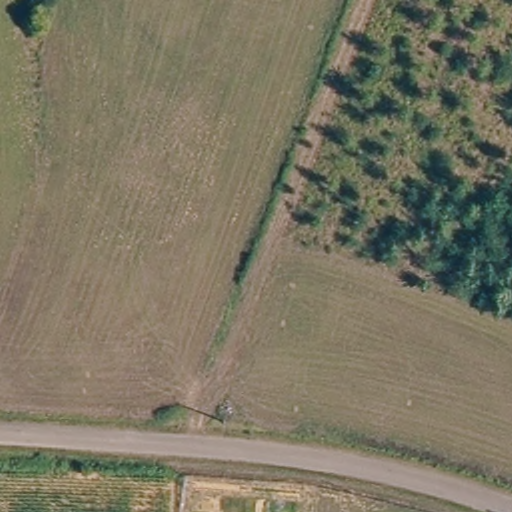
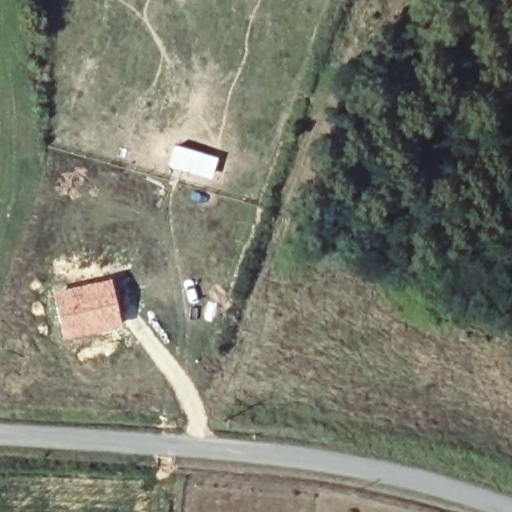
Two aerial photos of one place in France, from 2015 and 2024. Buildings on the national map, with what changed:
new [(110,278),(121,328),(62,339),(52,289),(110,278)]

